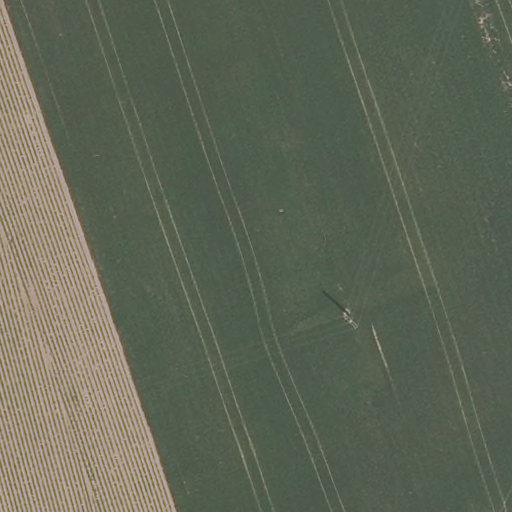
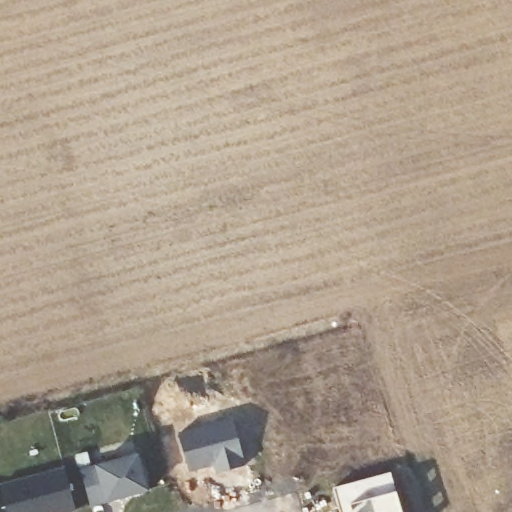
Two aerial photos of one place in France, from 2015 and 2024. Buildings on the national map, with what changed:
new [(178,432),(231,417),(246,466),(217,474),(213,465),(189,472),(178,432)]
new [(139,453),(149,492),(91,507),(80,468),(139,453)]
new [(63,467),(76,511),(73,512),(7,512),(0,486),(0,484),(63,467)]
new [(334,488),(391,472),(397,491),(402,512),(340,512),(334,488)]

